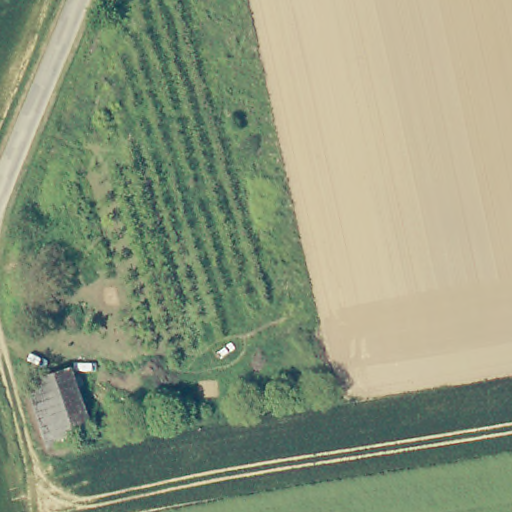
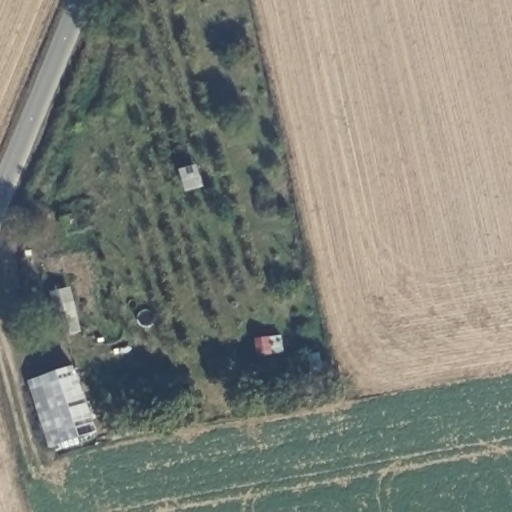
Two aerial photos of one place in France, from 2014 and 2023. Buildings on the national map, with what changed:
unchanged [(93,432),(50,445),(30,382),(76,369),(93,432)]

